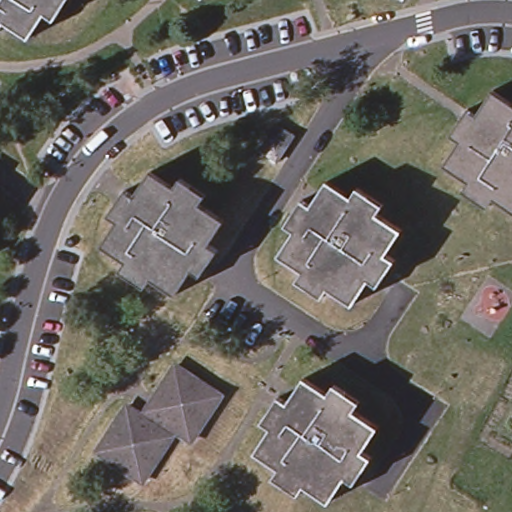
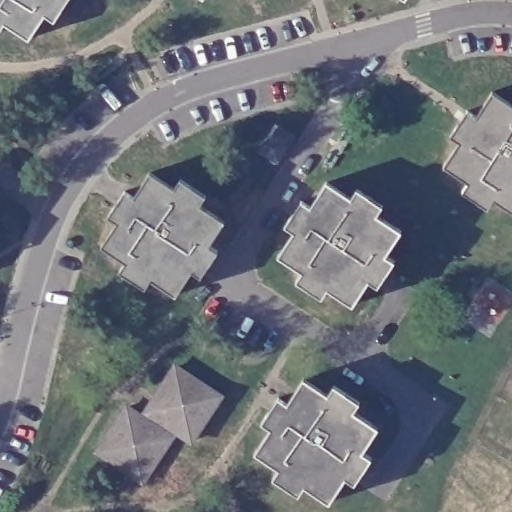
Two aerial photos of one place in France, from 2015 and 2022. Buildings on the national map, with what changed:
unchanged [(47,15),(32,39),(8,24),(2,32),(0,31),(0,0),(70,0),(58,21),(47,15)]
unchanged [(495,199),(489,207),(464,192),(471,182),(446,167),(461,144),(453,138),(469,112),(479,119),(496,95),(512,105),(512,211),(495,199)]
unchanged [(286,133),(270,157),(253,146),(269,122),(286,133)]
unchanged [(204,274),(203,275),(191,268),(176,291),(155,276),(147,287),(121,270),(128,258),(103,244),(120,217),(111,212),(129,186),(138,191),(153,170),(177,185),(183,175),(209,191),(203,200),(226,215),(211,239),(221,246),(212,260),(204,274)]
unchanged [(384,298),(374,293),(359,316),(334,301),(329,310),(304,295),(310,285),(286,267),(301,244),(292,237),(308,211),(318,217),(333,194),(358,209),(364,200),(389,216),(384,227),(407,242),(392,266),(400,272),(394,282),(385,296),(384,298)]
unchanged [(221,397),(190,442),(174,432),(142,481),(99,453),(128,408),(143,417),(178,368),(221,397)]
unchanged [(367,492),(366,494),(356,487),(341,512),(340,512),(314,497),(308,505),(284,490),(289,480),(266,465),(282,440),(273,434),(289,410),(299,415),(315,392),(338,406),(344,397),(371,414),(364,424),(388,440),(371,465),(381,471),(376,478),(367,492)]

